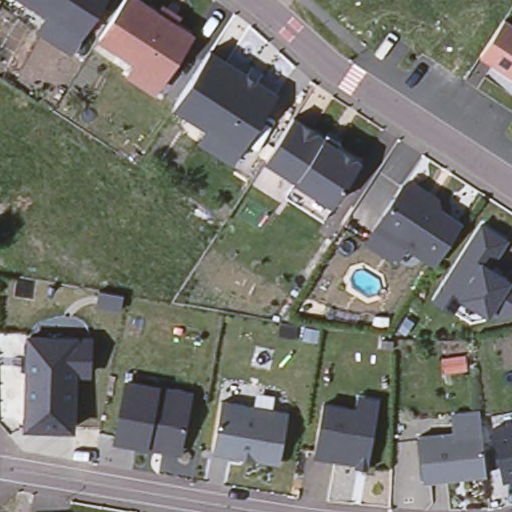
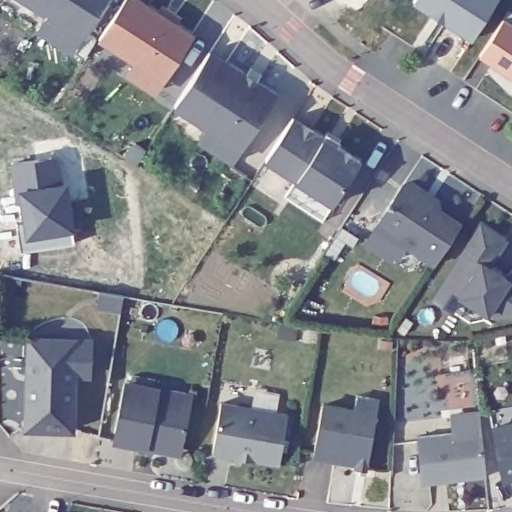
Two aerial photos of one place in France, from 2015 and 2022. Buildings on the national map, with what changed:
unchanged [(72,47),(40,26),(50,12),(32,0),(102,0),(81,32),(72,47)]
unchanged [(101,39),(126,0),(136,0),(192,37),(165,80),(101,39)]
new [(498,0),(473,40),(413,3),(415,0),(498,0)]
unchanged [(512,23),(512,74),(480,53),(503,17),(512,23)]
unchanged [(277,92),(242,146),(175,102),(210,49),(277,92)]
unchanged [(334,201),(297,176),(266,156),(294,114),(325,135),(337,143),(361,159),(334,201)]
new [(135,140),(146,147),(137,162),(125,154),(135,140)]
new [(60,160),(62,187),(70,187),(75,236),(72,236),(74,249),(22,255),(18,225),(24,224),(21,206),(16,207),(10,167),(60,160)]
unchanged [(368,232),(379,216),(407,174),(412,172),(439,191),(435,197),(463,215),(448,237),(437,254),(409,235),(397,252),(368,232)]
unchanged [(505,238),(488,263),(508,279),(511,270),(512,270),(512,309),(497,313),(489,307),(487,310),(483,316),(469,319),(451,307),(433,296),(480,222),(505,238)]
unchanged [(72,428),(25,427),(29,336),(75,338),(72,428)]
unchanged [(175,451),(162,448),(157,442),(147,440),(147,445),(114,438),(125,382),(157,389),(190,396),(189,404),(180,447),(175,451)]
unchanged [(256,458),(257,454),(235,451),(235,455),(212,451),(220,402),(287,413),(279,462),(256,458)]
unchanged [(357,466),(359,460),(315,452),(325,402),(379,412),(368,467),(357,466)]
unchanged [(502,476),(492,425),(490,413),(512,410),(512,474),(502,476)]
unchanged [(422,470),(417,427),(480,420),(485,457),(485,463),(452,467),(422,470)]

